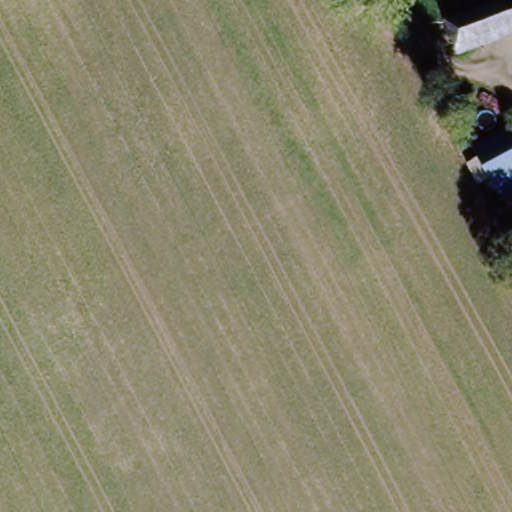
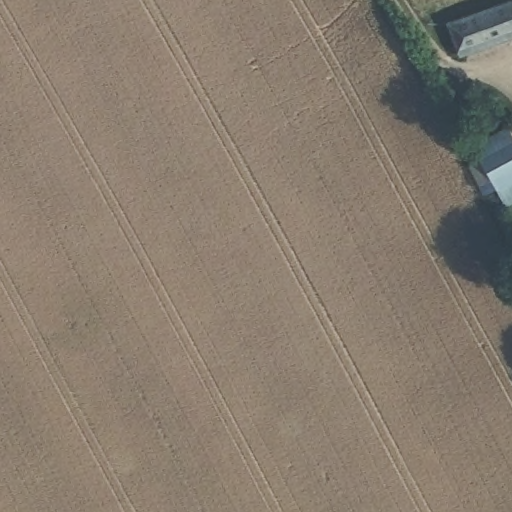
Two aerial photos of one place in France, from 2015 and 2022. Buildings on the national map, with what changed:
unchanged [(512,5),(512,38),(462,55),(450,27),(512,5)]
unchanged [(504,209),(494,191),(470,147),(503,130),(512,147),(512,205),(504,209)]

